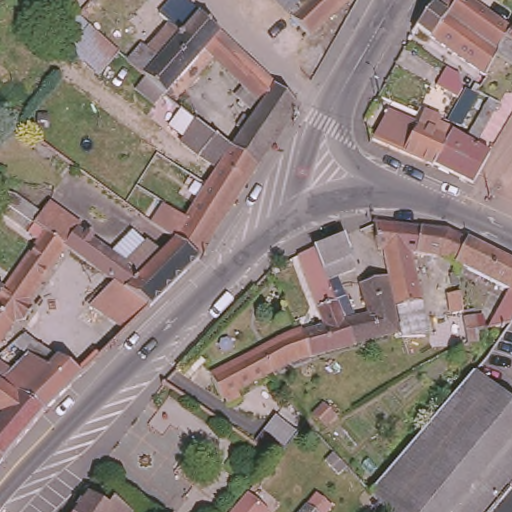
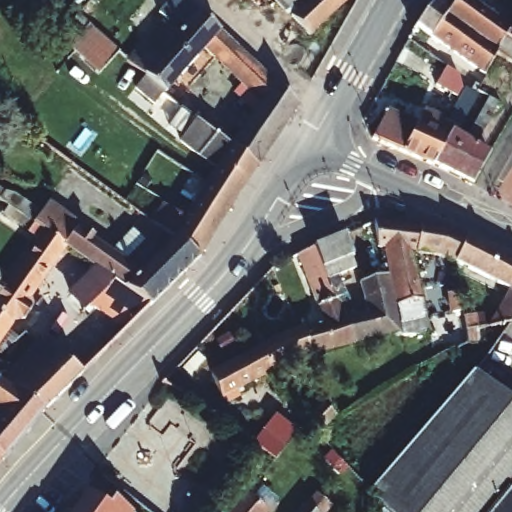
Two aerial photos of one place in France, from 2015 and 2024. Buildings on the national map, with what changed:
unchanged [(237,130),(245,119),(250,123),(254,117),(234,97),(241,90),(204,53),(170,92),(173,96),(168,101),(147,83),(127,65),(126,64),(141,48),(146,52),(167,26),(158,18),(176,0),(181,0),(199,17),(257,73),(277,91),(296,110),(282,131),(267,155),(257,171),(231,151),(243,135),(237,130)]
unchanged [(267,0),(346,0),(304,39),(267,0)]
unchanged [(478,76),(410,26),(413,21),(425,5),(430,9),(437,0),(462,0),(503,31),(507,24),(510,25),(512,21),(512,67),(491,55),(478,76)]
unchanged [(113,30),(105,40),(90,26),(100,16),(113,30)]
unchanged [(76,20),(115,55),(97,76),(58,39),(76,20)]
unchanged [(453,81),(454,83),(457,94),(457,99),(452,106),(432,91),(445,75),(453,81)]
unchanged [(470,96),(473,90),(478,93),(477,95),(458,130),(458,131),(447,124),(465,93),(470,96)]
unchanged [(431,171),(452,136),(465,144),(489,101),(494,105),(498,107),(475,149),(488,156),(470,190),(431,171)]
unchanged [(387,115),(417,128),(423,114),(440,121),(438,127),(452,133),(450,136),(452,136),(431,171),(370,144),(387,115)]
unchanged [(217,173),(161,136),(168,126),(205,149),(190,136),(199,126),(231,151),(257,171),(245,190),(236,204),(209,186),(217,173)]
unchanged [(171,184),(162,177),(165,173),(169,169),(173,172),(170,176),(173,180),(171,184)]
unchanged [(236,204),(215,237),(190,219),(187,217),(192,212),(209,186),(236,204)]
unchanged [(198,262),(187,273),(185,274),(150,311),(138,303),(113,287),(89,270),(85,267),(66,253),(47,240),(44,237),(33,230),(6,209),(0,205),(0,204),(6,197),(18,200),(41,217),(49,207),(75,225),(73,228),(115,259),(136,238),(147,246),(148,245),(159,255),(161,252),(171,242),(198,262)]
unchanged [(190,219),(215,237),(201,258),(198,262),(171,242),(160,234),(140,219),(154,201),(173,215),(176,210),(187,217),(190,219)]
unchanged [(408,251),(424,332),(396,336),(390,305),(379,250),(377,250),(373,250),(369,222),(370,221),(439,226),(461,237),(456,250),(450,262),(437,256),(408,251)]
unchanged [(347,255),(345,256),(350,267),(332,275),(350,315),(338,319),(308,247),(337,235),(338,235),(347,255)]
unchanged [(44,237),(47,240),(66,253),(28,307),(30,313),(23,323),(16,323),(12,330),(0,321),(0,289),(4,292),(44,237)]
unchanged [(512,263),(512,308),(502,323),(490,325),(488,325),(486,325),(486,323),(486,321),(504,289),(450,262),(456,250),(461,237),(512,263)]
unchanged [(298,252),(308,247),(338,319),(348,343),(333,347),(306,354),(297,330),(318,324),(292,254),(298,252)]
unchanged [(363,312),(355,281),(380,276),(387,305),(393,330),(348,343),(338,319),(350,315),(363,312)]
unchanged [(93,308),(113,287),(138,303),(150,311),(126,334),(118,328),(91,310),(93,308)]
unchanged [(481,327),(471,327),(472,340),(463,342),(462,338),(459,316),(478,315),(481,327)]
unchanged [(0,347),(0,321),(12,330),(0,347)]
unchanged [(202,377),(277,337),(297,330),(306,354),(301,356),(287,361),(274,367),(261,374),(217,398),(215,396),(202,377)]
unchanged [(23,360),(22,359),(34,345),(81,378),(43,414),(0,384),(0,369),(8,376),(23,360)]
unchanged [(383,511),(375,502),(370,496),(372,494),(377,488),(447,406),(451,401),(473,375),(512,407),(512,512),(384,512),(383,511)]
unchanged [(15,447),(3,462),(0,459),(0,384),(43,414),(15,447)]
unchanged [(0,465),(0,459),(3,462),(0,465)]
unchanged [(230,510),(245,493),(267,512),(229,512),(230,510)]
unchanged [(80,495),(102,511),(108,504),(117,512),(68,512),(80,495)]
unchanged [(306,503),(316,512),(298,512),(306,503)]

